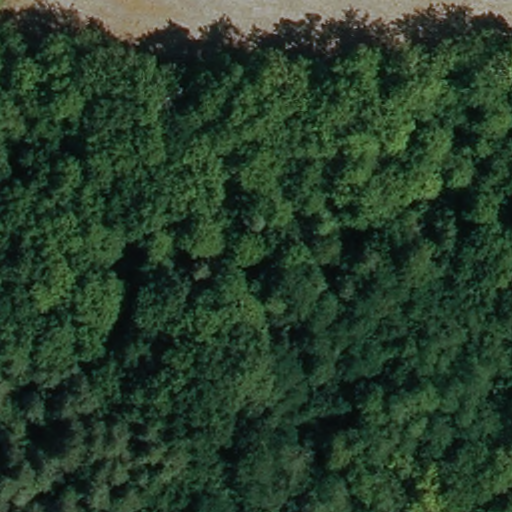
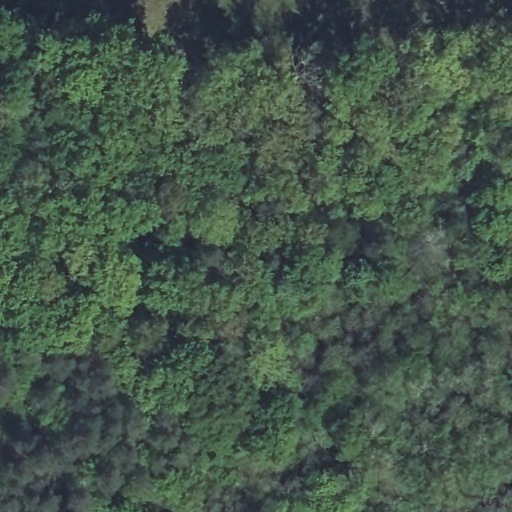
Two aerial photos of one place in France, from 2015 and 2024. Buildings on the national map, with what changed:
[]

